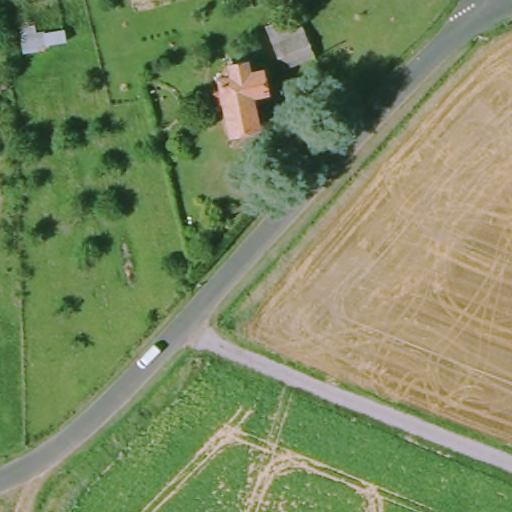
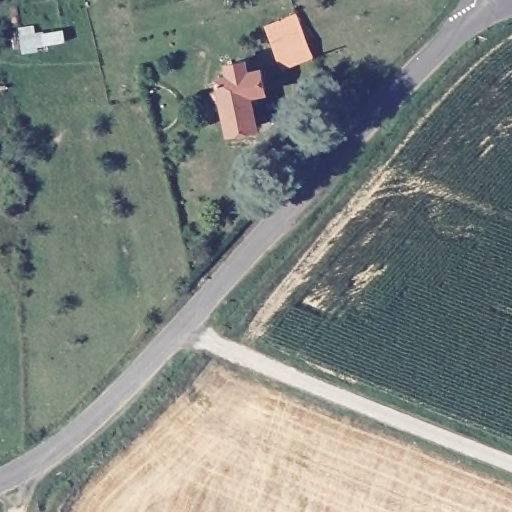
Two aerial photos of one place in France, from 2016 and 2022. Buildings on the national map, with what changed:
unchanged [(295,11),(295,12),(311,54),(279,66),(263,23),(295,11)]
unchanged [(10,21),(28,19),(32,34),(63,28),(65,43),(43,44),(45,51),(18,56),(10,21)]
unchanged [(245,61),(247,72),(259,70),(263,87),(259,88),(261,106),(250,107),(252,125),(226,129),(222,102),(215,103),(215,93),(218,93),(217,76),(230,74),(228,63),(245,61)]

